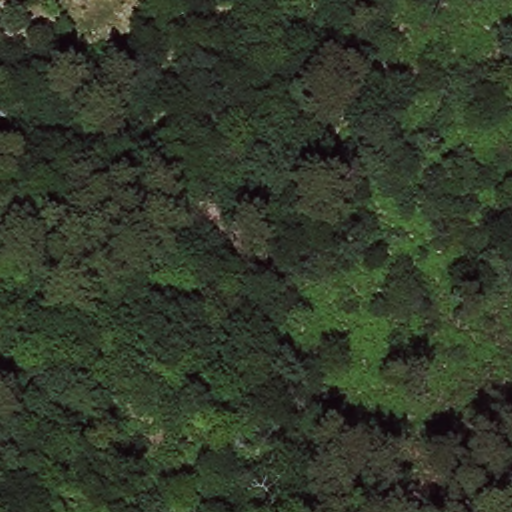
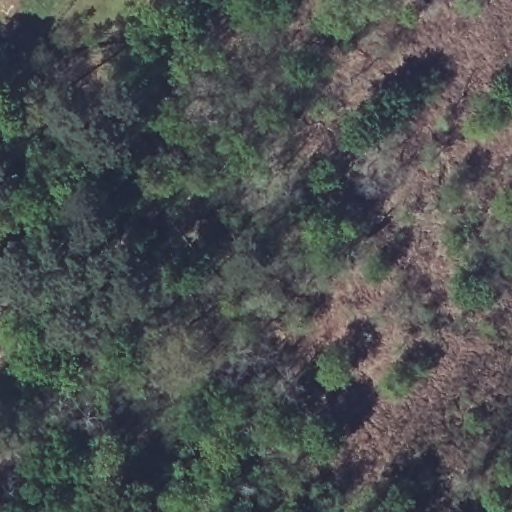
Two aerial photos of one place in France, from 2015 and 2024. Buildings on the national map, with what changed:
unchanged [(6,96),(7,107),(0,108),(0,91),(2,95),(6,96)]

